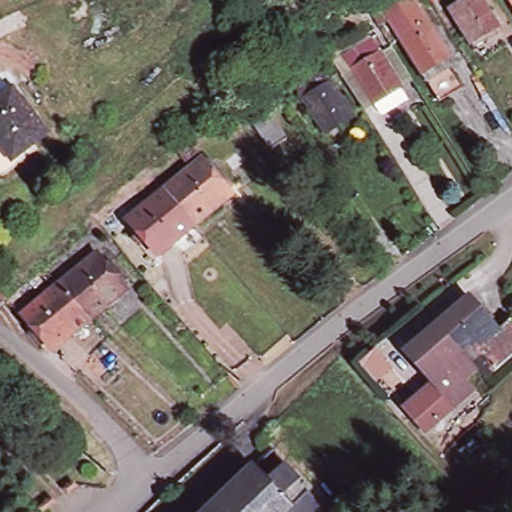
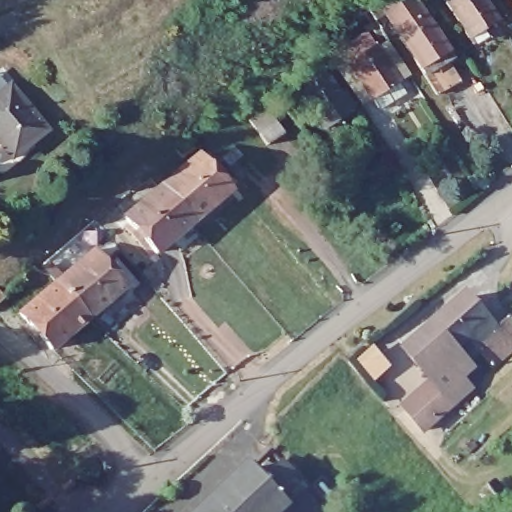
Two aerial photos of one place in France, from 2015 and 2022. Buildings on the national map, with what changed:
unchanged [(458,83),(436,97),(420,71),(397,36),(383,13),(377,4),(384,0),(412,0),(423,19),(446,53),(430,64),(435,70),(445,63),(458,83)]
unchanged [(453,0),(480,0),(494,22),(467,40),(445,5),(453,0)]
unchanged [(512,5),(509,0),(512,0),(512,5)]
unchanged [(380,108),(373,98),(372,98),(349,63),(340,50),(367,32),(376,45),(399,80),(398,81),(405,92),(380,108)]
unchanged [(327,77),(351,111),(325,129),(300,94),(327,77)]
unchanged [(10,85),(45,129),(10,156),(0,164),(0,93),(10,85)]
unchanged [(267,113),(283,137),(266,147),(250,123),(267,113)]
unchanged [(197,151),(186,160),(178,151),(189,142),(197,151)]
unchanged [(202,157),(233,195),(196,225),(164,188),(202,157)]
unchanged [(164,188),(196,225),(157,257),(125,219),(164,188)]
unchanged [(94,253),(124,289),(86,319),(56,284),(94,253)]
unchanged [(47,350),(17,314),(56,284),(86,319),(47,350)]
unchanged [(408,395),(426,380),(400,348),(431,320),(463,293),(491,325),(505,313),(512,322),(512,342),(486,365),(472,349),(461,358),(466,365),(456,373),(465,384),(426,417),(408,395)]
unchanged [(267,481),(283,466),(306,490),(328,512),(203,512),(251,466),(267,481)]

